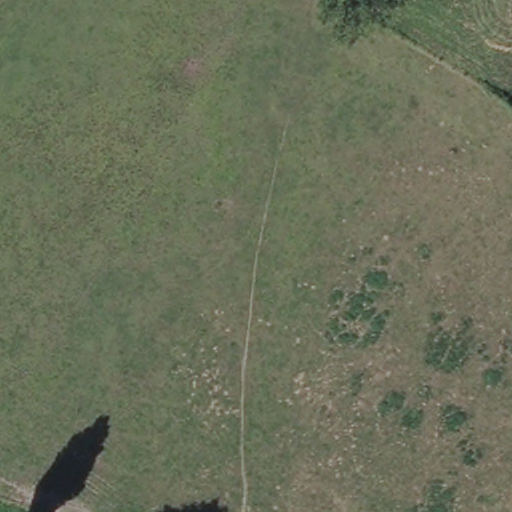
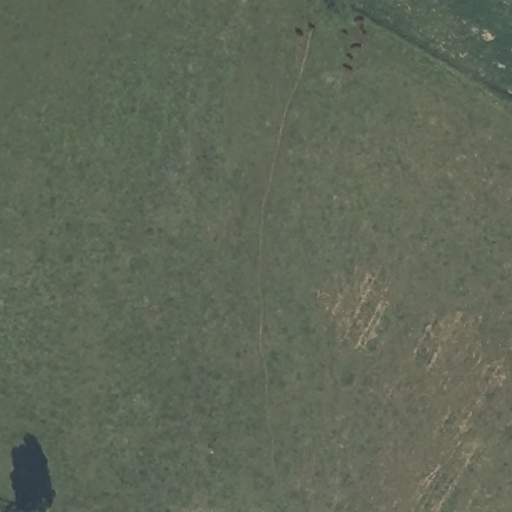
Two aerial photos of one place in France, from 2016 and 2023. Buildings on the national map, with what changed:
[]

